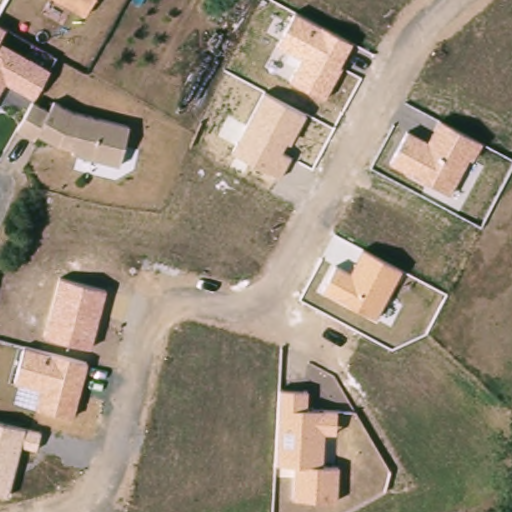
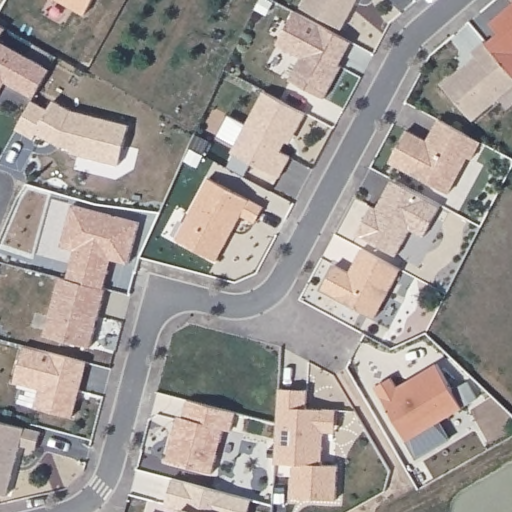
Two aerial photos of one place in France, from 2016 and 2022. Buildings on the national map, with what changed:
unchanged [(69,4),(71,0),(93,0),(86,12),(69,4)]
new [(354,0),(339,28),(298,5),(301,0),(354,0)]
new [(504,8),(508,5),(512,1),(512,75),(484,43),(497,32),(488,22),(504,8)]
unchanged [(354,42),(326,100),(287,82),(301,57),(277,46),(296,10),(354,42)]
unchanged [(0,37),(0,23),(6,26),(0,37)]
new [(473,56),(469,51),(481,40),(484,43),(512,75),(512,76),(512,83),(471,119),(440,84),(473,56)]
unchanged [(33,97),(3,82),(0,88),(0,41),(49,67),(33,97)]
unchanged [(308,114),(290,145),(285,142),(280,150),(292,156),(281,176),(231,153),(265,89),(308,114)]
unchanged [(117,165),(71,154),(73,149),(58,144),(36,135),(34,139),(18,130),(34,101),(48,110),(54,100),(71,110),(126,125),(117,165)]
unchanged [(481,140),(450,195),(388,162),(406,129),(427,139),(438,118),(481,140)]
new [(206,179),(261,207),(253,223),(238,215),(214,261),(174,240),(206,179)]
new [(375,207),(382,194),(390,179),(439,205),(423,235),(409,228),(395,255),(355,234),(370,205),(375,207)]
new [(75,250),(61,245),(73,204),(140,222),(129,263),(114,260),(105,288),(66,278),(75,250)]
unchanged [(402,267),(376,318),(322,287),(336,263),(351,272),(364,249),(402,267)]
unchanged [(106,288),(91,348),(44,336),(58,276),(106,288)]
unchanged [(88,360),(74,418),(35,408),(35,406),(12,400),(18,385),(15,382),(25,344),(88,360)]
new [(377,385),(392,376),(398,386),(438,362),(464,406),(407,440),(377,385)]
unchanged [(308,408),(336,410),(335,435),(324,433),(323,465),(339,465),(337,501),(293,500),(295,466),(276,464),(278,387),(310,389),(308,408)]
new [(177,417),(182,418),(187,400),(234,411),(230,430),(223,428),(213,472),(166,461),(173,433),(177,417)]
unchanged [(36,450),(23,446),(9,496),(0,494),(0,420),(41,431),(36,450)]
new [(184,510),(169,505),(175,480),(253,499),(249,512),(183,512),(184,510)]

